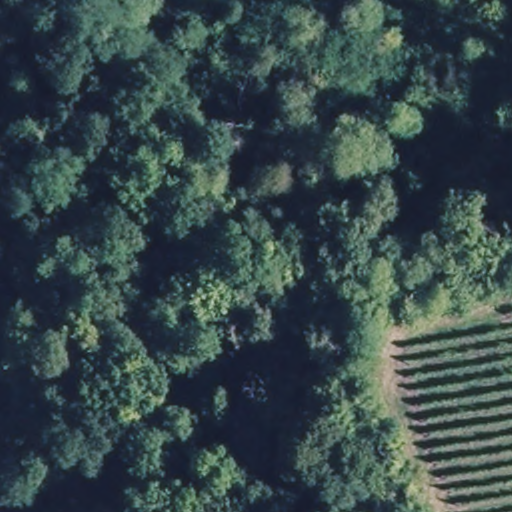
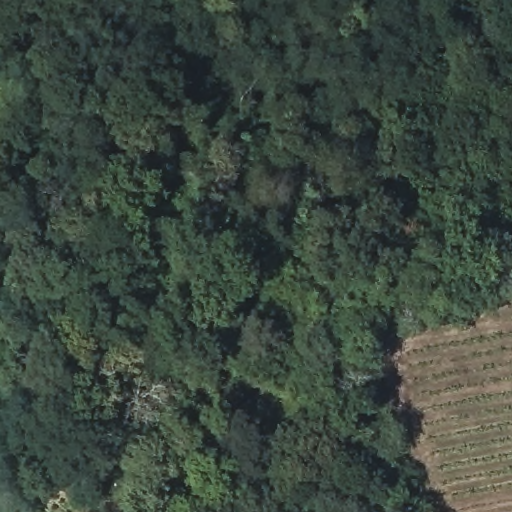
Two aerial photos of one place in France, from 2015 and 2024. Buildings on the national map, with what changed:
unchanged [(21,512),(0,512),(0,503),(2,500),(21,512)]

